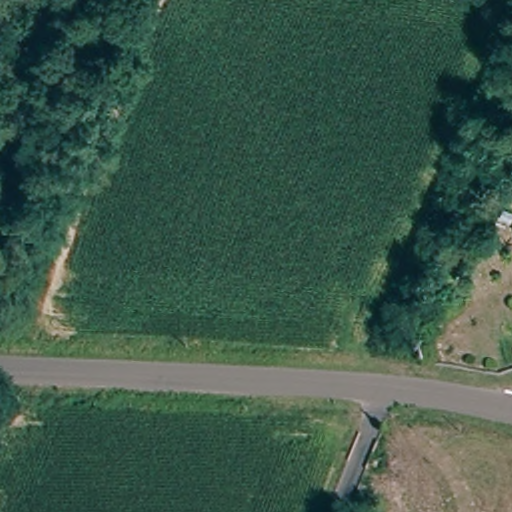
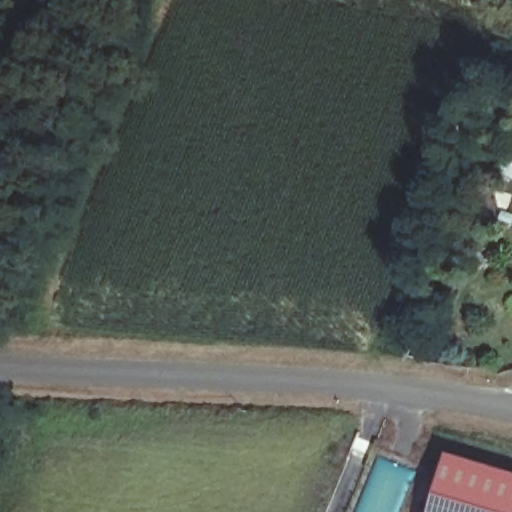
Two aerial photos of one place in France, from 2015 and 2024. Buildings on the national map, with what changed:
new [(512,471),(512,512),(434,512),(451,453),(512,471)]

